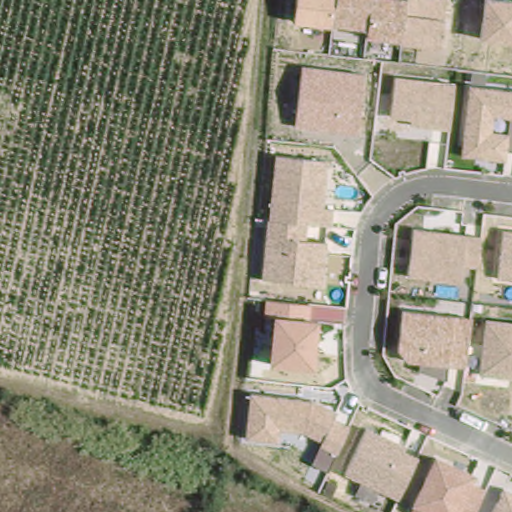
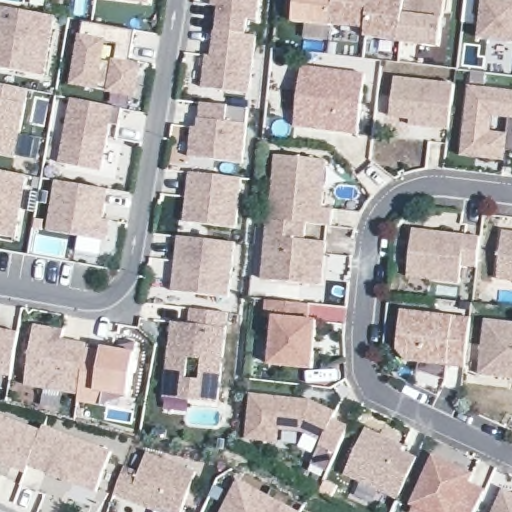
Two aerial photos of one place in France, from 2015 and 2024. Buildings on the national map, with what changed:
new [(126,0),(150,0),(150,3),(126,0)]
new [(248,19),(246,33),(216,30),(218,7),(211,6),(212,0),(260,0),(258,19),(248,19)]
unchanged [(365,38),(366,30),(331,25),(331,28),(294,23),(296,0),(447,0),(442,47),(365,38)]
unchanged [(481,41),(485,0),(512,0),(512,44),(481,41)]
new [(39,71),(0,65),(0,3),(48,11),(39,71)]
new [(131,62),(140,64),(135,96),(73,87),(83,25),(135,33),(131,62)]
new [(198,86),(201,53),(206,54),(209,30),(251,34),(245,90),(198,86)]
unchanged [(366,73),(359,135),(294,128),(301,65),(366,73)]
unchanged [(455,82),(450,130),(409,126),(409,121),(391,119),(396,76),(455,82)]
new [(0,152),(0,81),(23,85),(11,154),(0,152)]
unchanged [(512,89),(512,151),(507,151),(505,161),(462,156),(470,85),(512,89)]
new [(114,118),(105,116),(97,165),(55,158),(66,93),(117,101),(114,118)]
new [(246,106),(241,161),(186,156),(189,126),(194,126),(196,118),(198,101),(246,106)]
unchanged [(327,159),(324,208),(334,208),(333,228),(307,225),(306,240),(327,242),(324,286),(261,281),(275,154),(327,159)]
new [(0,231),(0,167),(23,171),(13,233),(0,231)]
new [(240,176),(235,226),(183,221),(188,171),(240,176)]
new [(100,213),(108,214),(104,236),(48,228),(56,176),(104,183),(100,213)]
unchanged [(482,236),(478,268),(463,266),(460,285),(408,279),(414,227),(482,236)]
unchanged [(512,230),(512,282),(497,281),(504,229),(512,230)]
new [(236,241),(230,296),(173,291),(178,236),(236,241)]
unchanged [(311,304),(310,319),(319,320),(316,371),(269,367),(273,319),(264,319),(266,298),(311,304)]
new [(228,304),(221,380),(167,374),(173,314),(190,315),(191,300),(228,304)]
unchanged [(472,316),(466,368),(451,366),(448,383),(419,369),(419,365),(406,363),(397,349),(401,309),(472,316)]
unchanged [(478,376),(485,319),(512,321),(512,380),(478,376)]
new [(109,389),(103,395),(79,391),(80,387),(43,382),(25,379),(28,367),(34,320),(64,324),(62,340),(70,341),(70,335),(88,338),(88,334),(103,337),(136,342),(129,386),(104,382),(128,386),(118,385),(109,389)]
new [(0,369),(0,324),(18,327),(11,371),(0,369)]
new [(103,337),(138,332),(136,342),(103,337)]
new [(62,340),(63,334),(70,335),(70,341),(62,340)]
unchanged [(313,399),(339,411),(334,419),(351,426),(328,472),(311,463),(321,441),(303,433),(281,431),(279,443),(244,441),(249,393),(313,399)]
new [(43,432),(29,467),(27,474),(0,463),(0,415),(43,431),(43,432)]
new [(75,484),(29,467),(43,432),(43,431),(45,426),(113,452),(99,489),(98,493),(75,484)]
unchanged [(406,444),(403,450),(419,458),(400,501),(344,476),(368,428),(406,444)]
unchanged [(478,474),(474,483),(486,489),(475,512),(426,512),(411,505),(434,455),(478,474)]
new [(128,470),(143,476),(151,456),(201,475),(187,512),(158,512),(118,498),(128,470)]
new [(298,512),(222,512),(238,481),(298,512)]
unchanged [(512,492),(512,512),(493,512),(504,489),(512,492)]

